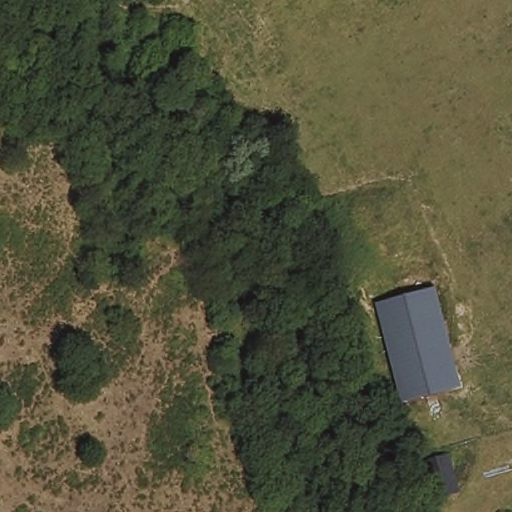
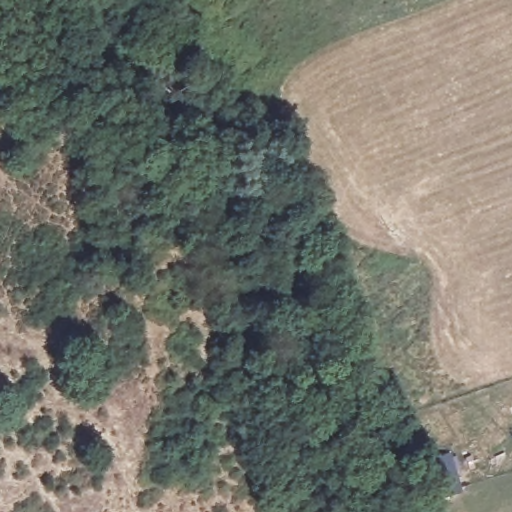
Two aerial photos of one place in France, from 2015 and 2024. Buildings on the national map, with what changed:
demolished [(402,399),(375,299),(436,282),(460,384),(402,399)]
unchanged [(431,512),(426,512),(421,482),(440,479),(446,509),(431,512)]

